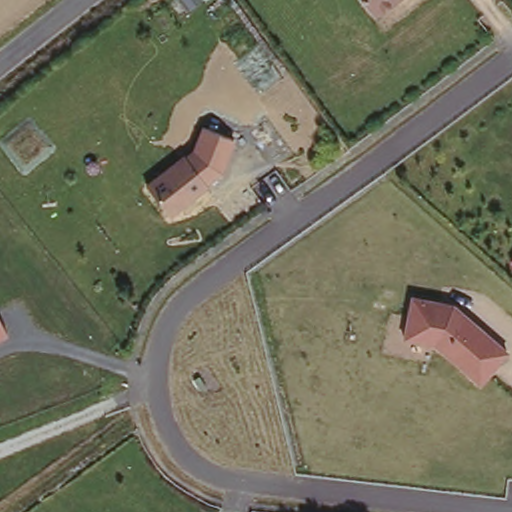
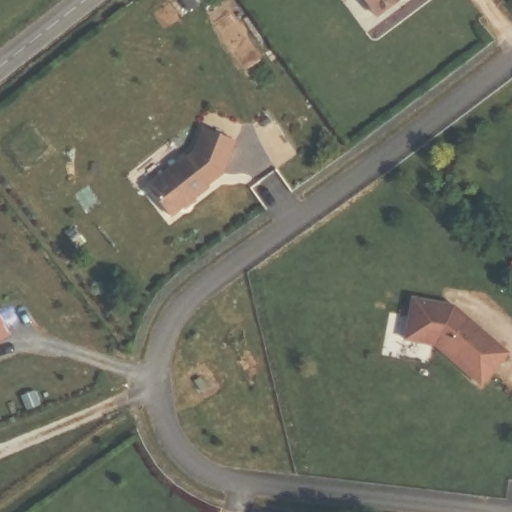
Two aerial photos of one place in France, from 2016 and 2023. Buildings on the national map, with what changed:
unchanged [(362,0),(399,0),(375,19),(362,0)]
unchanged [(194,152),(202,127),(237,139),(225,174),(202,190),(181,160),(194,152)]
unchanged [(181,160),(207,195),(168,220),(145,186),(181,160)]
unchanged [(410,295),(456,304),(509,352),(478,384),(433,345),(403,338),(410,295)]
unchanged [(0,338),(0,321),(7,335),(0,338)]

